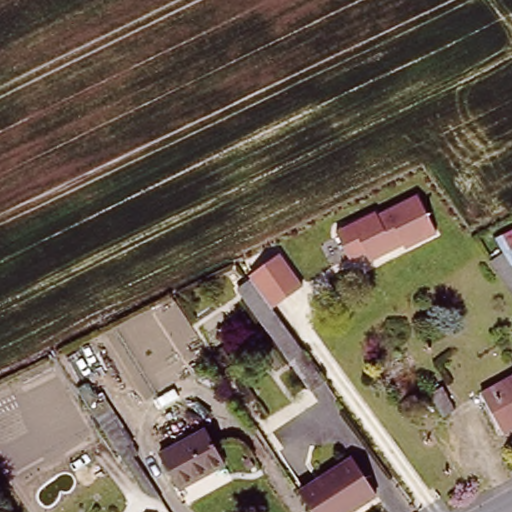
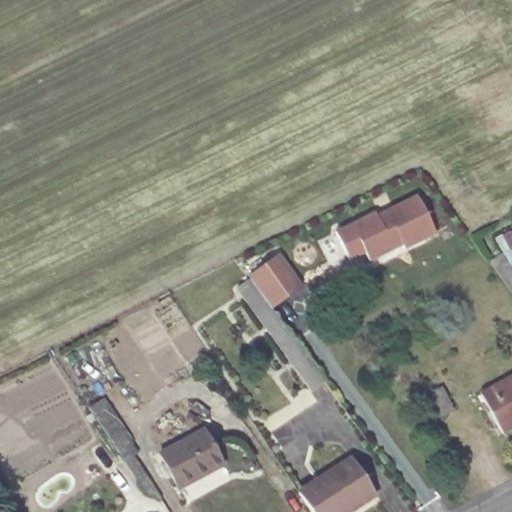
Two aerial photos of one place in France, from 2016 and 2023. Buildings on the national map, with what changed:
unchanged [(419,192),(437,233),(405,251),(403,247),(366,265),(366,259),(350,264),(336,232),(419,192)]
unchanged [(303,285),(275,309),(324,382),(311,394),(234,290),(280,253),(303,285)]
unchanged [(512,272),(512,290),(494,265),(504,261),(512,272)]
unchanged [(512,378),(512,425),(505,429),(503,427),(484,393),(512,378)]
unchanged [(455,413),(443,419),(430,397),(443,390),(455,413)]
unchanged [(203,435),(211,448),(221,460),(223,467),(180,493),(178,491),(161,461),(203,435)]
unchanged [(350,462),(351,463),(375,496),(351,512),(308,512),(297,495),(350,462)]

